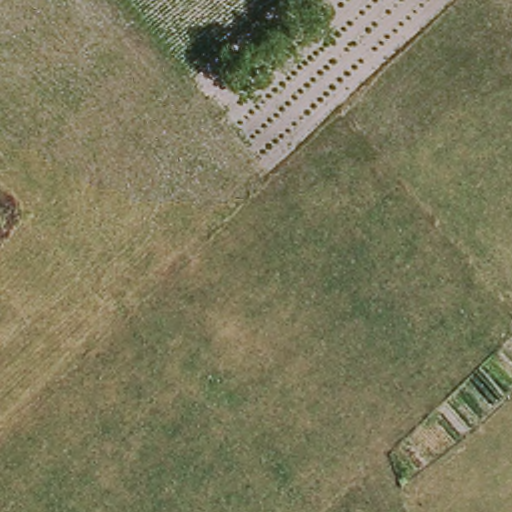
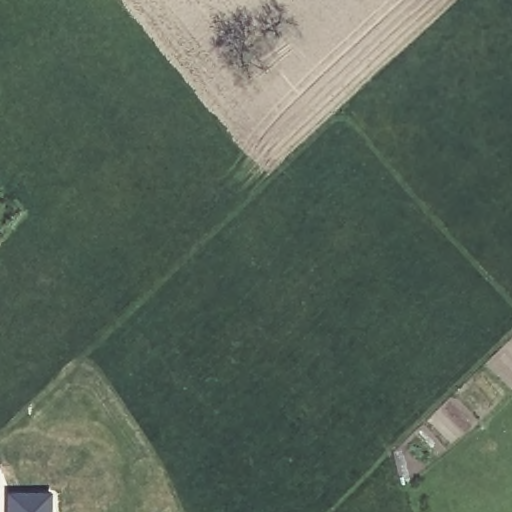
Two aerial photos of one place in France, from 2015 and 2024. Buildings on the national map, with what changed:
new [(52,493),(52,512),(6,512),(6,492),(52,493)]

